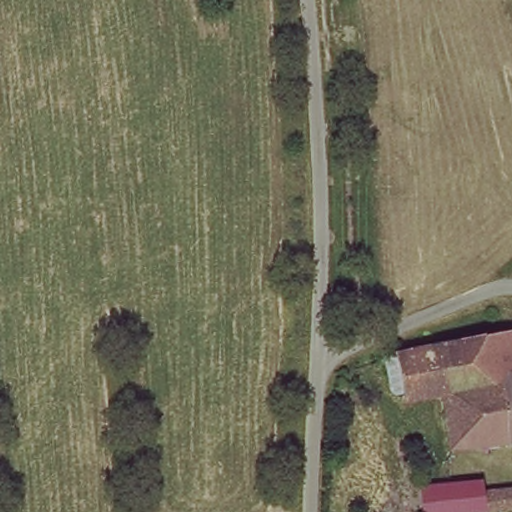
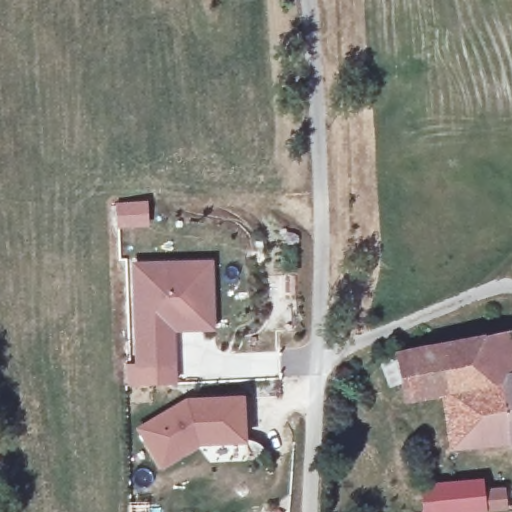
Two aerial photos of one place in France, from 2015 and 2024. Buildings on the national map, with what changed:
new [(177,332),(179,367),(135,368),(132,263),(213,261),(215,330),(177,332)]
unchanged [(489,381),(483,338),(512,336),(512,377),(489,381)]
unchanged [(478,391),(448,392),(441,343),(483,338),(489,381),(512,377),(512,444),(485,447),(478,391)]
unchanged [(409,396),(403,347),(441,343),(448,392),(409,396)]
unchanged [(478,391),(485,447),(454,450),(448,392),(478,391)]
new [(137,428),(187,398),(244,395),(247,443),(199,444),(162,468),(137,428)]
unchanged [(512,484),(512,503),(435,512),(426,512),(423,479),(480,473),(482,487),(512,484)]

